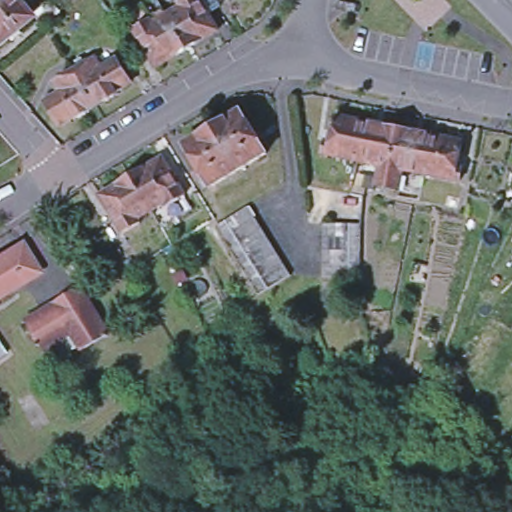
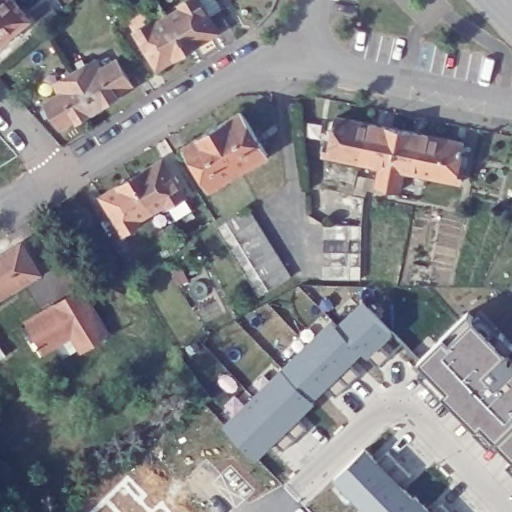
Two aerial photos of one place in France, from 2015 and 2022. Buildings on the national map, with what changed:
unchanged [(28,21),(0,46),(0,0),(10,0),(28,21)]
unchanged [(187,49),(167,15),(183,6),(181,2),(185,0),(201,0),(219,30),(187,49)]
unchanged [(156,67),(134,28),(152,18),(155,23),(165,16),(167,15),(187,49),(156,67)]
unchanged [(75,76),(95,64),(101,74),(117,64),(132,87),(115,98),(112,103),(107,107),(101,106),(95,110),(75,76)]
unchanged [(86,115),(85,120),(79,123),(75,121),(57,131),(43,107),(59,97),(53,88),(75,76),(95,110),(86,115)]
unchanged [(241,114),(266,157),(208,191),(183,148),(241,114)]
unchanged [(360,160),(323,153),(325,140),(331,141),(336,115),(367,122),(360,160)]
unchanged [(387,188),(376,186),(380,165),(360,160),(367,122),(371,123),(400,128),(426,134),(431,135),(423,173),(404,169),(400,191),(387,188)]
unchanged [(457,166),(463,168),(460,180),(423,173),(431,135),(462,141),(457,166)]
unchanged [(131,175),(160,157),(185,196),(167,206),(165,202),(151,210),(131,175)]
unchanged [(138,217),(141,222),(123,232),(100,194),(129,176),(131,175),(151,210),(138,217)]
unchanged [(250,283),(245,272),(237,260),(230,249),(224,238),(217,226),(249,207),(255,219),(262,230),(269,242),(276,254),(282,265),(288,276),(257,295),(250,283)]
unchanged [(323,266),(323,253),(324,239),(325,225),(360,227),(360,241),(360,254),(360,267),(359,278),(322,277),(323,266)]
unchanged [(20,243),(37,272),(0,295),(0,255),(20,243)]
unchanged [(106,334),(80,350),(70,333),(41,350),(23,320),(79,287),(106,334)]
new [(330,323),(335,329),(363,303),(392,336),(366,362),(360,354),(338,377),(309,344),(330,323)]
new [(512,365),(512,462),(479,427),(474,433),(442,399),(448,395),(415,368),(467,318),(512,365)]
new [(306,341),(309,344),(338,377),(345,384),(334,395),(323,383),(310,396),(280,366),(306,341)]
new [(280,366),(310,396),(312,398),(294,415),(305,426),(292,437),(251,394),(280,366)]
new [(251,394),(292,437),(280,449),(270,438),(253,455),(222,423),(251,394)]
new [(362,445),(375,458),(386,448),(397,459),(356,499),(331,474),(362,445)]
new [(409,471),(397,482),(410,495),(393,512),(368,512),(356,499),(397,459),(409,471)]
new [(138,503),(148,512),(95,512),(128,479),(145,495),(138,503)]
new [(430,510),(440,500),(451,512),(393,512),(412,493),(430,510)]
new [(167,512),(154,512),(161,506),(167,512)]

